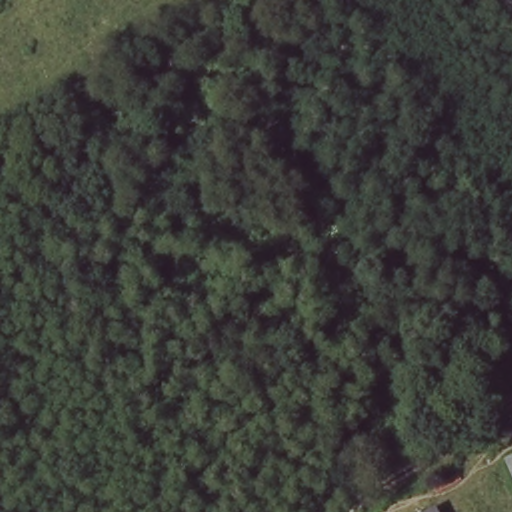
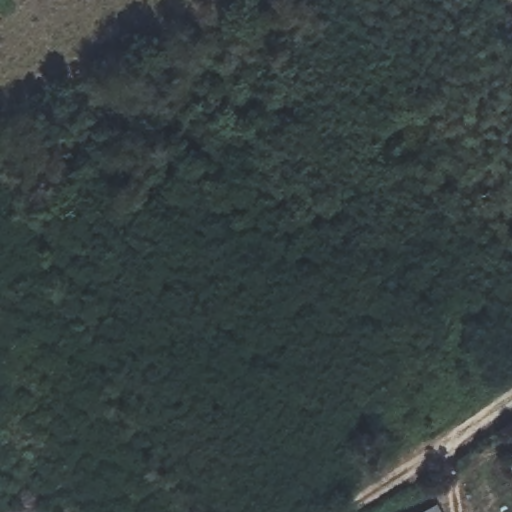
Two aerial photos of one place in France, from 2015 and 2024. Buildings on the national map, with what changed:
unchanged [(512,455),(512,475),(504,459),(512,455)]
unchanged [(425,507),(428,512),(414,512),(425,507)]

